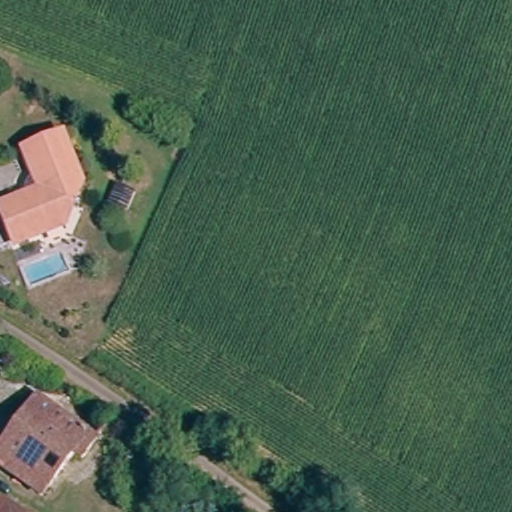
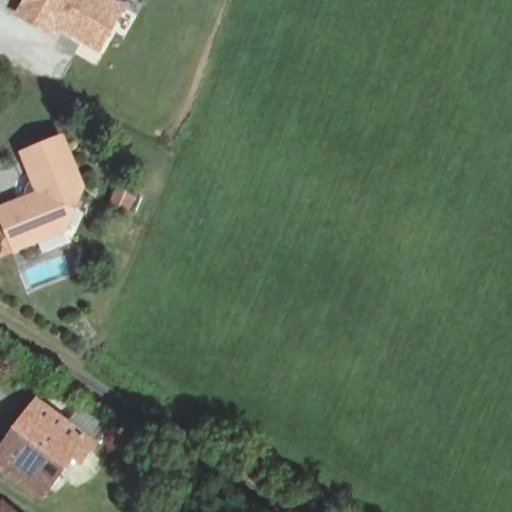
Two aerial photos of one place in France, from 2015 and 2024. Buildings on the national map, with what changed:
new [(24,0),(115,0),(128,7),(101,55),(57,29),(52,38),(14,17),(24,0)]
unchanged [(69,237),(57,240),(4,255),(0,243),(0,208),(17,202),(17,192),(17,190),(20,183),(27,178),(19,141),(69,127),(84,179),(84,182),(90,184),(69,237)]
unchanged [(76,473),(67,468),(36,509),(0,484),(0,456),(45,395),(96,426),(106,434),(76,473)]
unchanged [(0,502),(14,512),(0,512),(0,502)]

